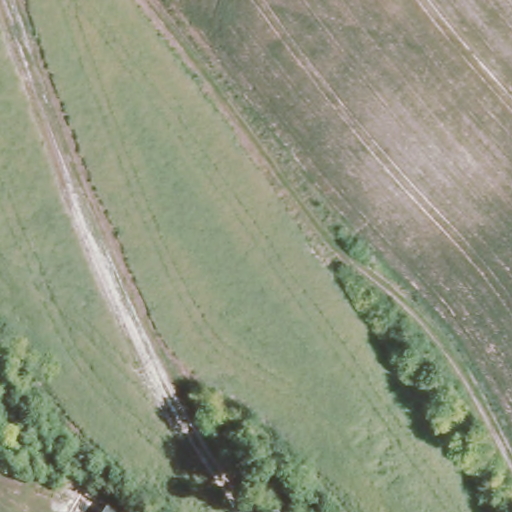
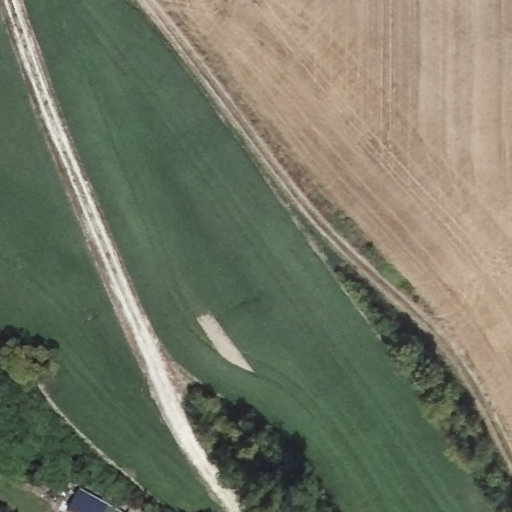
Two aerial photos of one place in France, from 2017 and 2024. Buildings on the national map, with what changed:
unchanged [(126,512),(68,512),(82,488),(126,512)]

